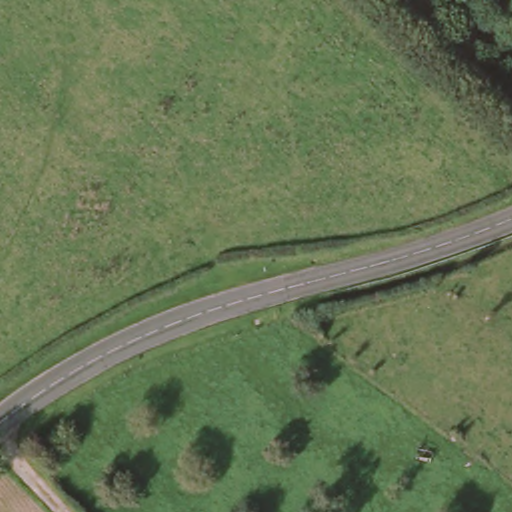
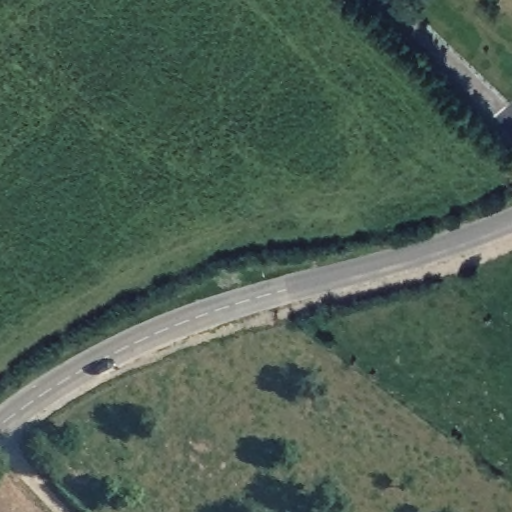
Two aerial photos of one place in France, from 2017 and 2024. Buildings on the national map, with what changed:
[]

